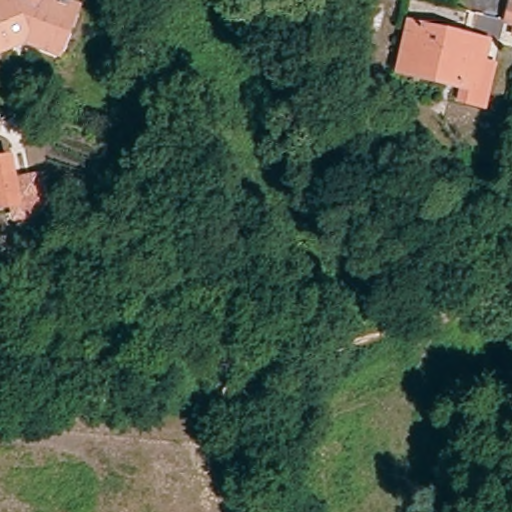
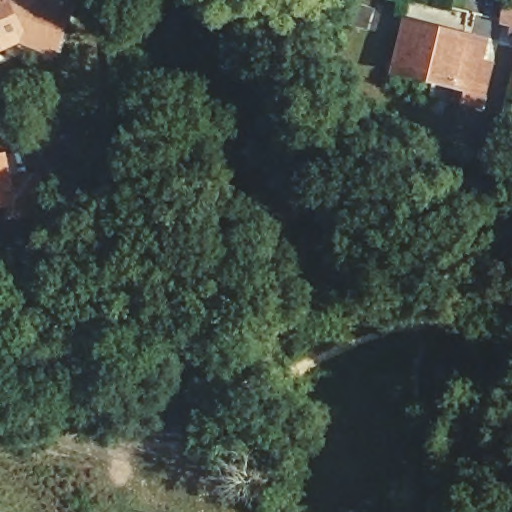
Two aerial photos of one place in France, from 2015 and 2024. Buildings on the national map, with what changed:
unchanged [(33,38),(0,51),(0,2),(5,0),(60,0),(79,7),(73,30),(68,48),(56,44),(33,38)]
unchanged [(503,20),(505,12),(507,0),(512,0),(512,27),(501,25),(503,20)]
unchanged [(398,81),(410,32),(469,46),(488,50),(487,57),(476,101),(398,81)]
unchanged [(10,202),(0,204),(0,159),(3,158),(10,202)]

